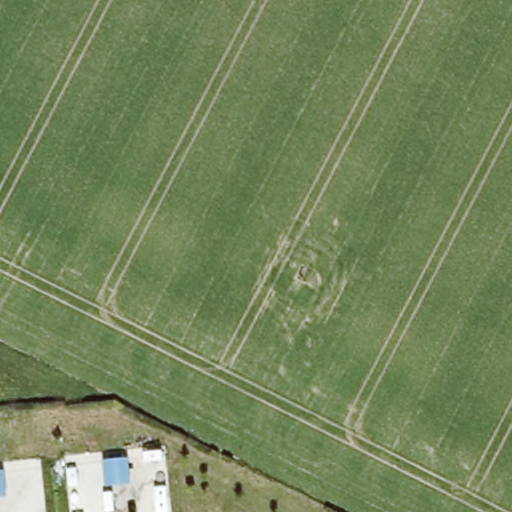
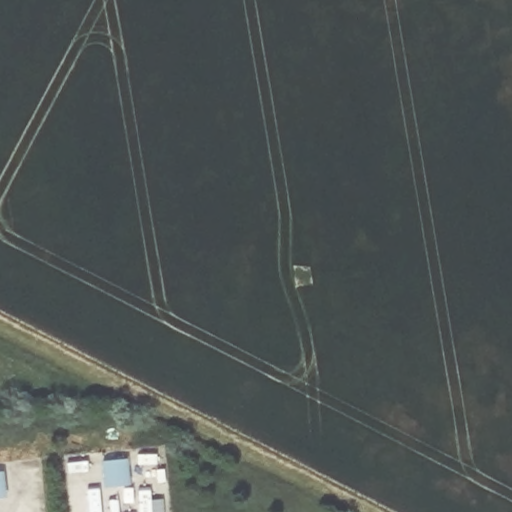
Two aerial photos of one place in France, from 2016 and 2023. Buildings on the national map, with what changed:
unchanged [(128,458),(130,484),(104,486),(102,460),(128,458)]
unchanged [(7,496),(0,497),(0,470),(3,470),(7,496)]

